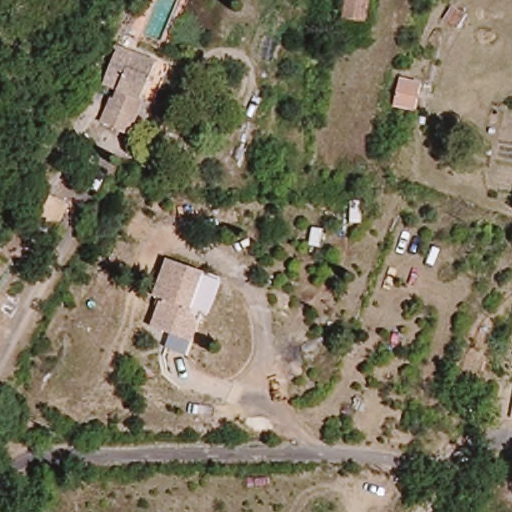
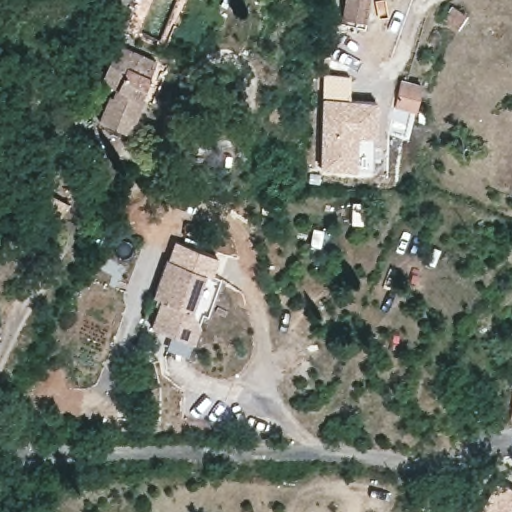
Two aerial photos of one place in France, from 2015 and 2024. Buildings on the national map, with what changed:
unchanged [(342,19),(343,5),(334,3),(334,0),(367,0),(364,21),(342,19)]
unchanged [(458,29),(445,20),(453,9),(466,17),(458,29)]
unchanged [(118,98),(137,52),(158,60),(143,100),(145,100),(133,131),(105,120),(115,97),(118,98)]
new [(320,170),(323,99),(323,76),(351,76),(348,99),(376,99),(375,136),(357,135),(354,170),(320,170)]
unchanged [(414,93),(410,114),(389,110),(394,85),(402,86),(415,89),(414,93)]
unchanged [(53,230),(37,221),(50,196),(67,205),(53,230)]
unchanged [(204,270),(191,306),(198,322),(187,353),(166,346),(171,331),(152,325),(162,296),(154,293),(167,257),(204,270)]
unchanged [(512,397),(512,413),(509,412),(512,397)]
new [(512,485),(512,512),(477,512),(497,477),(512,485)]

